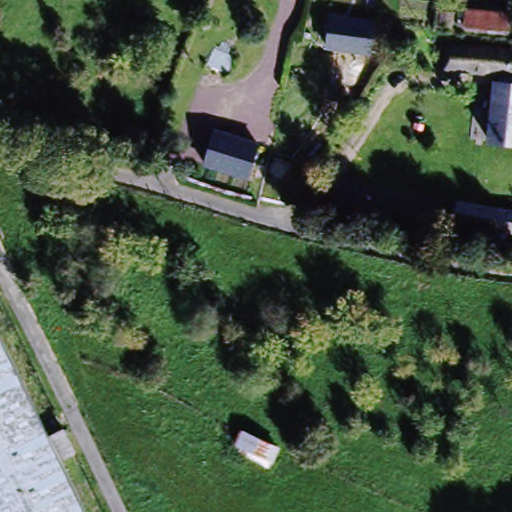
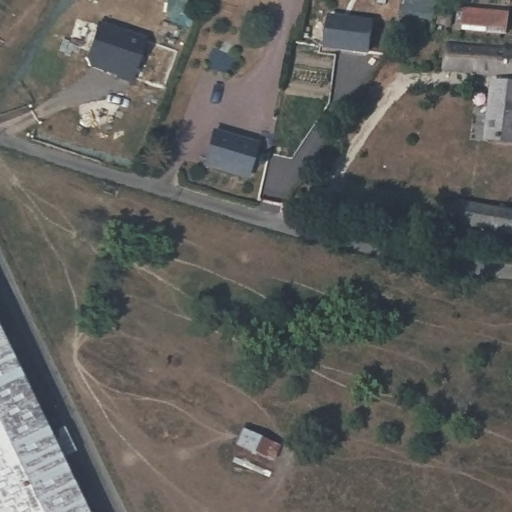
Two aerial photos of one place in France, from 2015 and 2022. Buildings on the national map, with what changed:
unchanged [(511,16),(507,30),(464,22),(468,6),(511,16)]
unchanged [(337,19),(380,19),(380,49),(337,49),(337,19)]
new [(148,38),(132,83),(116,78),(116,76),(84,64),(98,20),(148,38)]
demolished [(245,59),(223,53),(229,37),(250,42),(245,59)]
unchanged [(442,66),(448,45),(512,60),(512,82),(447,68),(442,66)]
new [(233,67),(211,61),(217,46),(237,50),(233,67)]
unchanged [(512,81),(512,147),(485,143),(493,77),(512,81)]
unchanged [(248,179),(202,167),(212,133),(258,146),(248,179)]
unchanged [(512,236),(452,224),(456,200),(512,210),(512,236)]
unchanged [(52,420),(94,512),(0,512),(0,310),(52,420)]

